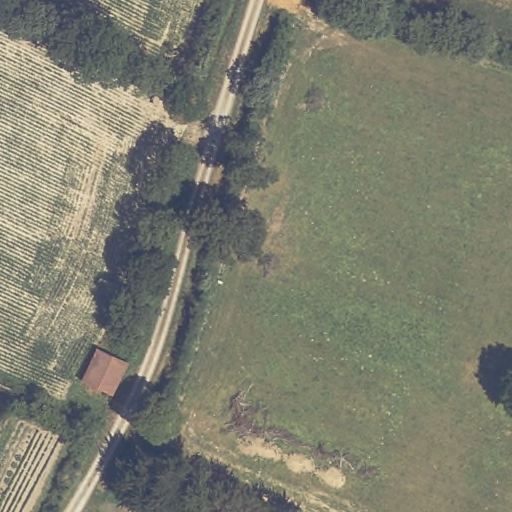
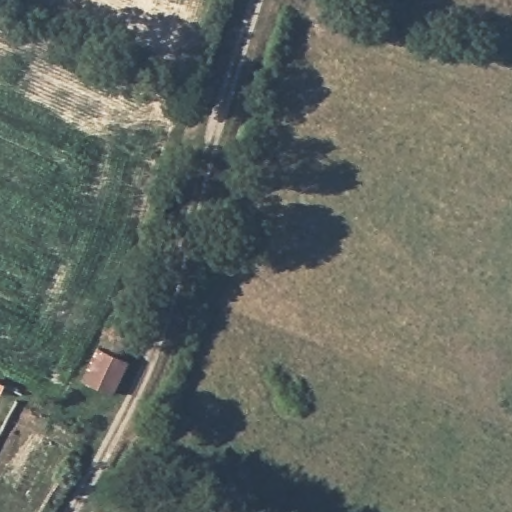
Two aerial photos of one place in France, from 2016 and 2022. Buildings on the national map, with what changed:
unchanged [(80,381),(96,348),(125,361),(111,395),(80,381)]

